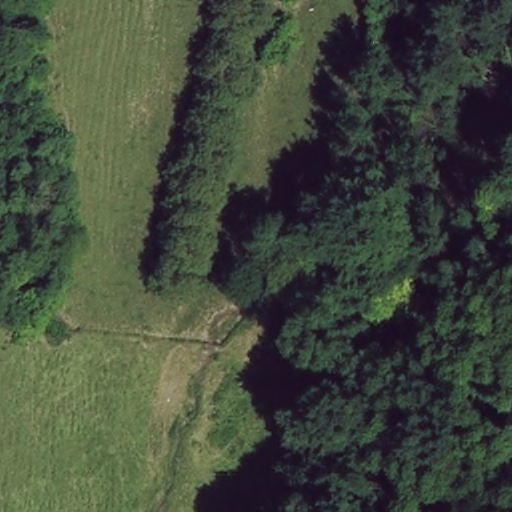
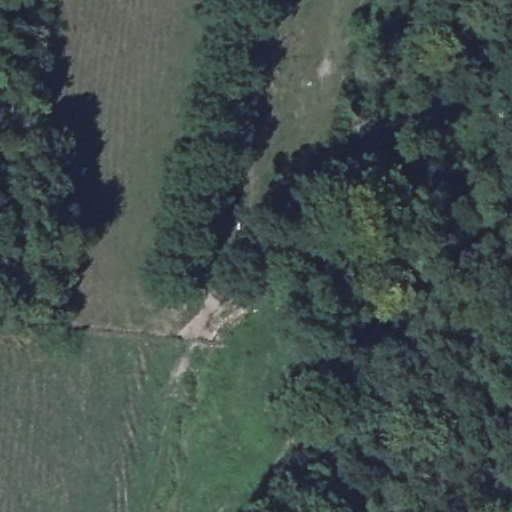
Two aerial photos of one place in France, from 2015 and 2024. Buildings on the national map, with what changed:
[]

